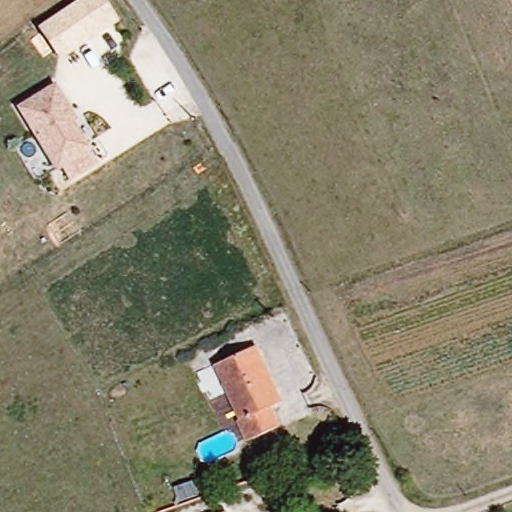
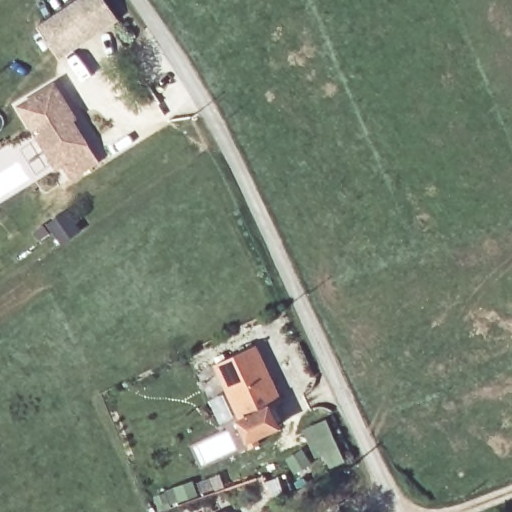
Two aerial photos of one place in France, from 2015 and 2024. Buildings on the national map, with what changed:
unchanged [(37,24),(73,0),(105,0),(118,21),(60,58),(37,24)]
unchanged [(49,83),(68,114),(65,116),(90,163),(60,181),(50,163),(46,166),(10,106),(49,83)]
unchanged [(230,360),(261,344),(283,396),(272,401),(281,421),(255,435),(244,413),(252,410),(230,360)]
unchanged [(234,418),(212,368),(230,360),(252,410),(244,413),(234,418)]
new [(292,467),(294,454),(306,447),(298,434),(326,417),(334,431),(331,432),(347,459),(332,468),(323,453),(310,460),(312,464),(296,474),(292,467)]

